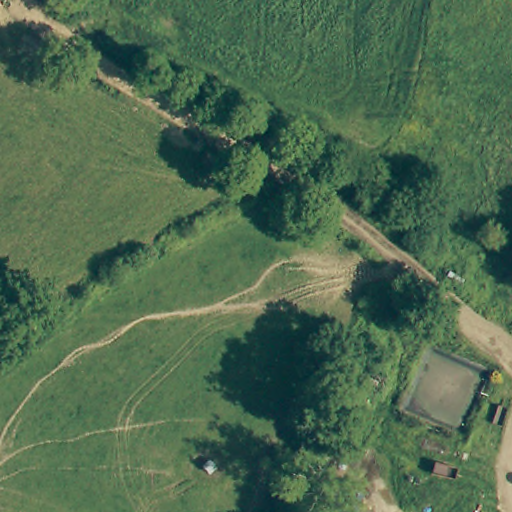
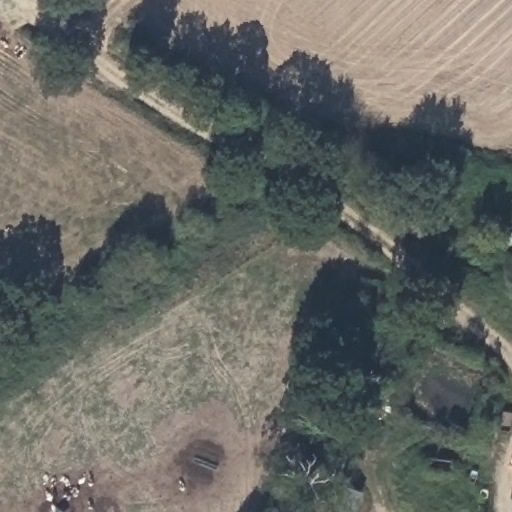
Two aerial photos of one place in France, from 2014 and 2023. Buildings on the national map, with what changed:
unchanged [(335,419),(358,427),(342,475),(318,466),(335,419)]
unchanged [(311,475),(339,486),(329,512),(297,512),(311,475)]

